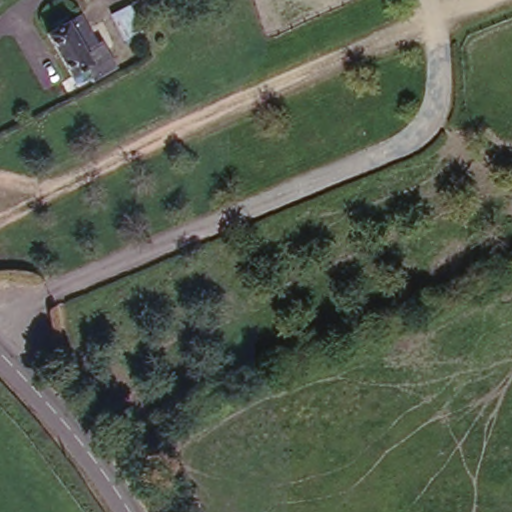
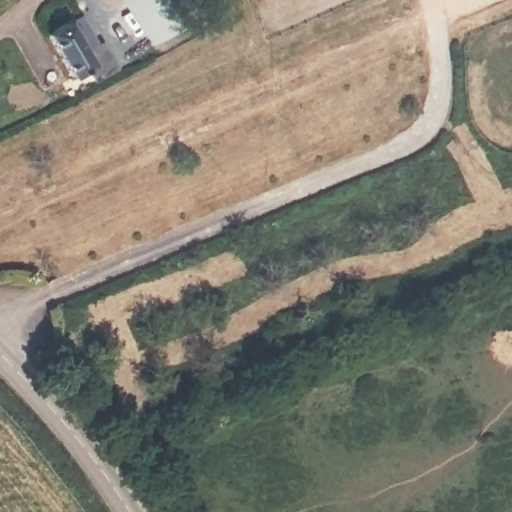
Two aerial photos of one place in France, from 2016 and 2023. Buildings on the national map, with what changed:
unchanged [(65,79),(41,36),(75,17),(92,46),(81,55),(83,58),(108,44),(119,64),(94,77),(88,67),(65,79)]

